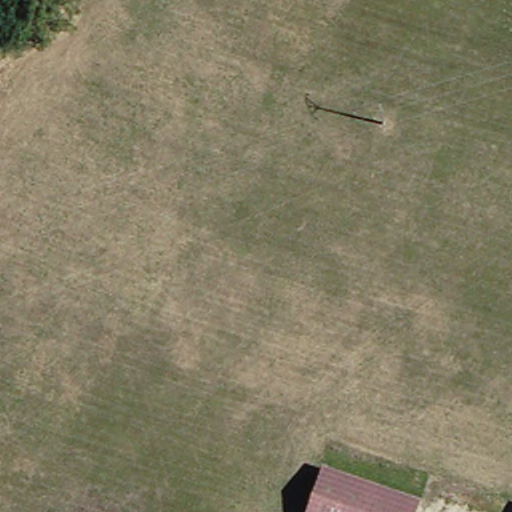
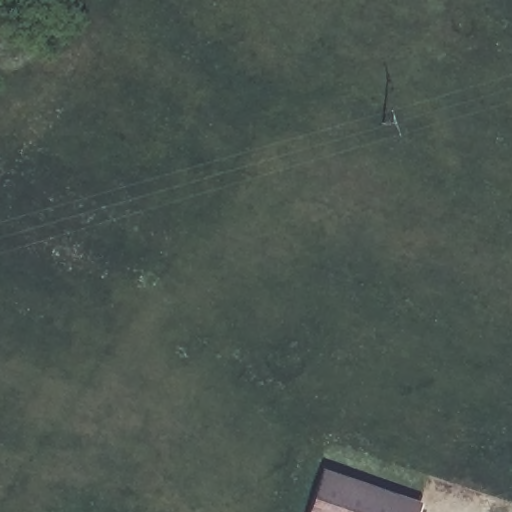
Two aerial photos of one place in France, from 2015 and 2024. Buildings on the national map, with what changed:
unchanged [(417,512),(299,512),(319,471),(417,512)]

